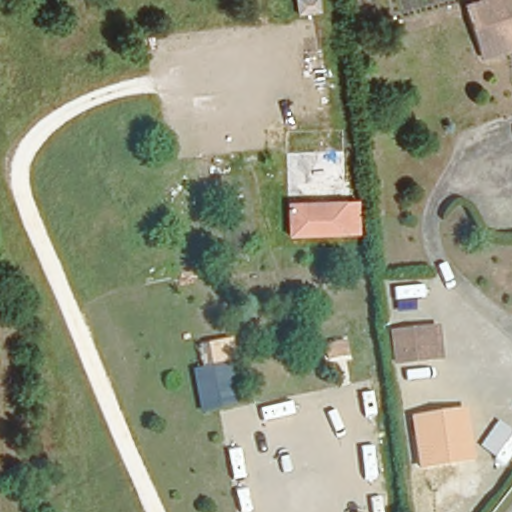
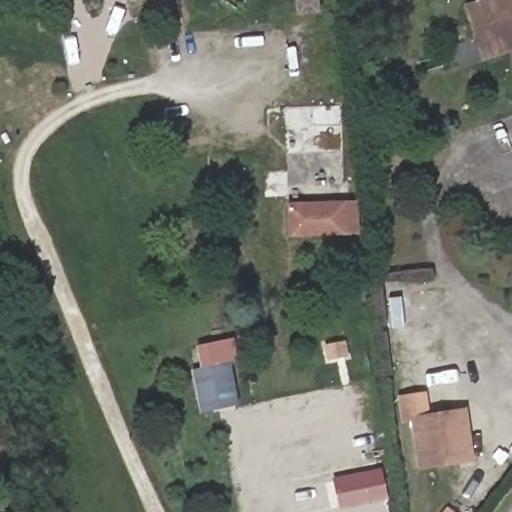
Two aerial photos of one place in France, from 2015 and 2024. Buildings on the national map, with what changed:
unchanged [(487,53),(483,42),(470,3),(478,0),(512,0),(512,46),(487,53)]
unchanged [(348,198),(350,236),(285,239),(284,200),(348,198)]
unchanged [(239,360),(229,362),(238,403),(202,411),(193,369),(201,366),(197,345),(234,338),(239,360)]
unchanged [(472,460),(418,468),(412,422),(401,423),(396,395),(425,390),(430,415),(464,409),(472,460)]
new [(338,510),(332,477),(382,467),(388,500),(338,510)]

